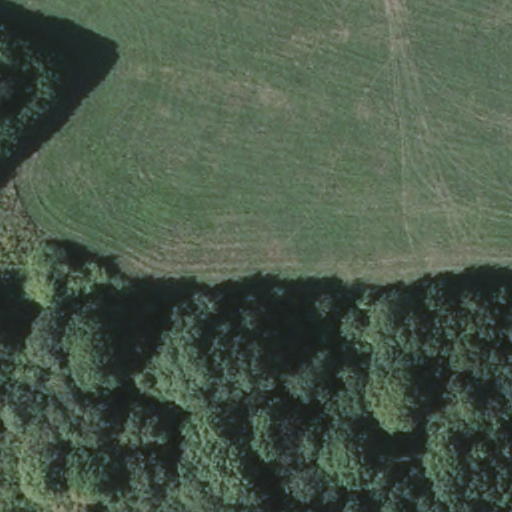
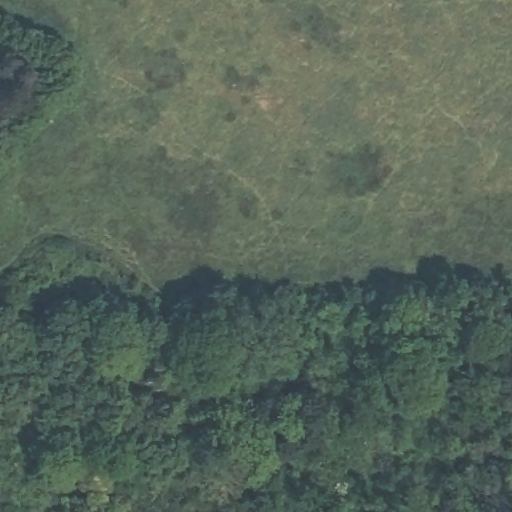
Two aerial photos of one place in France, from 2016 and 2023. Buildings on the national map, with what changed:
[]

